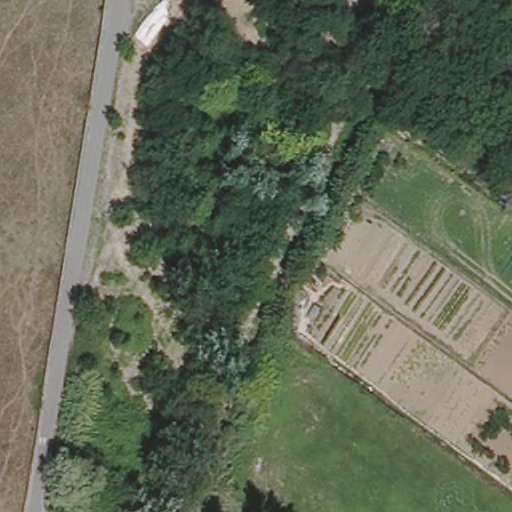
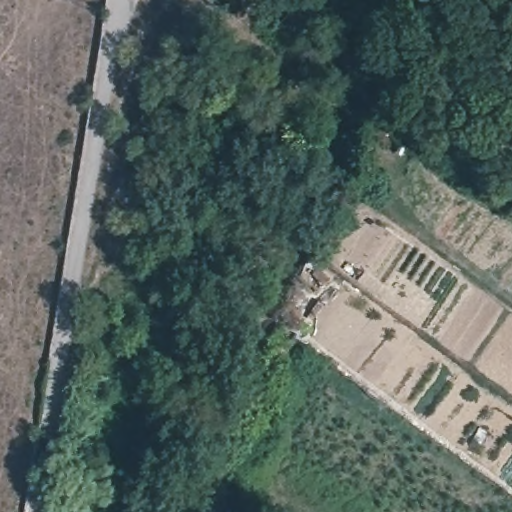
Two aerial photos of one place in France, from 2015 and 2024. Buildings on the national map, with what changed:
unchanged [(386,16),(365,5),(368,0),(395,0),(386,16)]

